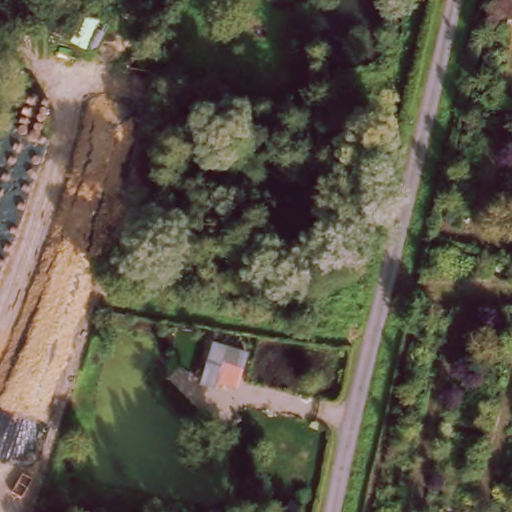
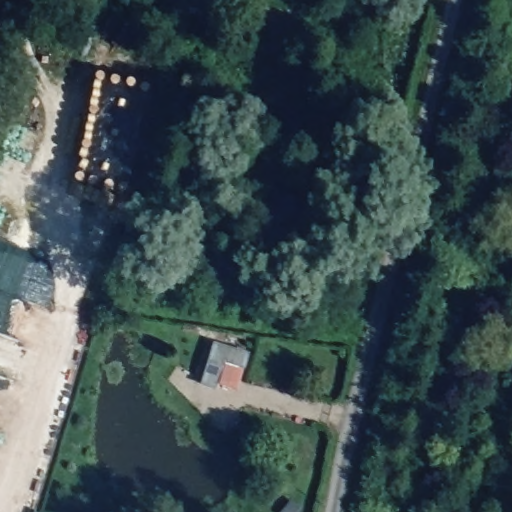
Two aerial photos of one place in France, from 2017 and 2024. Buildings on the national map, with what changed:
unchanged [(249,350),(246,369),(223,368),(217,387),(199,384),(211,341),(249,350)]

